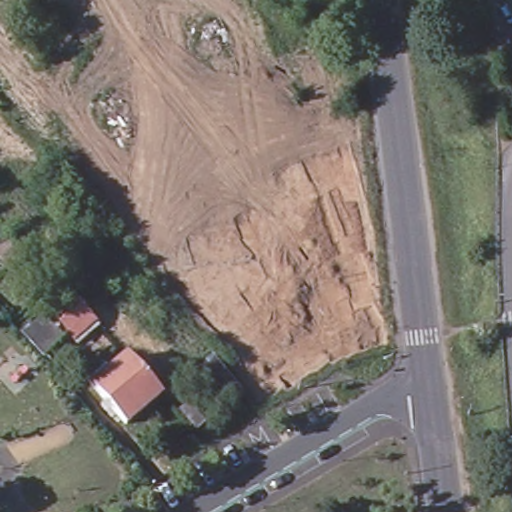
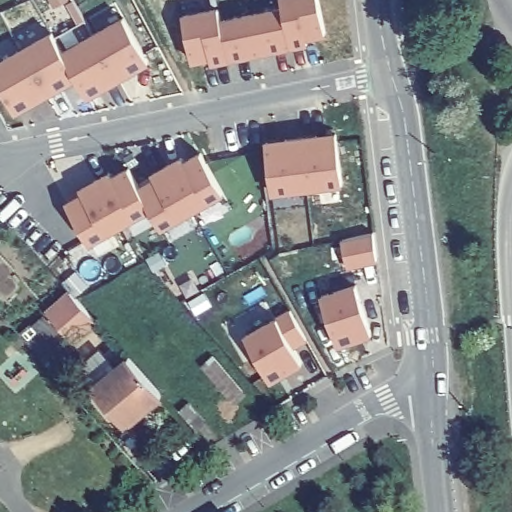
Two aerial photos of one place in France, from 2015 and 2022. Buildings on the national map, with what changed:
new [(325,34),(306,38),(307,43),(291,46),(283,10),(282,10),(280,0),(318,0),(325,34)]
new [(218,10),(221,23),(220,23),(228,60),(212,64),(210,58),(192,62),(182,18),(218,10)]
new [(282,10),(283,10),(291,46),(291,47),(260,53),(252,16),(282,10)]
new [(221,23),(252,16),(260,53),(228,60),(220,23),(221,23)]
new [(132,73),(118,81),(93,37),(124,19),(145,57),(149,63),(132,73)]
new [(84,92),(76,79),(60,87),(46,95),(22,52),(52,34),(63,54),(93,37),(118,81),(104,88),(87,98),(84,92)]
unchanged [(12,107),(0,86),(0,64),(22,52),(46,95),(32,103),(15,112),(12,107)]
new [(335,135),(336,142),(342,185),(307,189),(300,140),(317,138),(335,135)]
new [(307,189),(272,194),(266,151),(265,144),(285,142),(300,140),(307,189)]
new [(182,159),(184,164),(200,154),(223,194),(192,212),(167,167),(182,159)]
new [(155,180),(152,176),(167,167),(192,212),(161,229),(150,209),(139,189),(155,180)]
unchanged [(110,174),(112,179),(129,169),(139,189),(150,209),(120,227),(95,182),(110,174)]
new [(83,195),(80,190),(95,182),(120,227),(88,244),(67,204),(83,195)]
new [(373,234),(377,261),(347,267),(342,241),(373,234)]
new [(352,340),(336,346),(320,298),(355,286),(368,327),(367,327),(370,334),(352,340)]
unchanged [(83,342),(58,314),(75,300),(100,327),(83,342)]
new [(267,375),(266,376),(245,338),(290,312),(306,341),(292,348),(302,364),(286,373),(286,372),(270,381),(267,375)]
unchanged [(46,325),(67,349),(51,363),(30,339),(46,325)]
unchanged [(127,425),(95,389),(129,360),(162,395),(127,425)]
unchanged [(192,402),(209,422),(198,432),(181,412),(192,402)]

